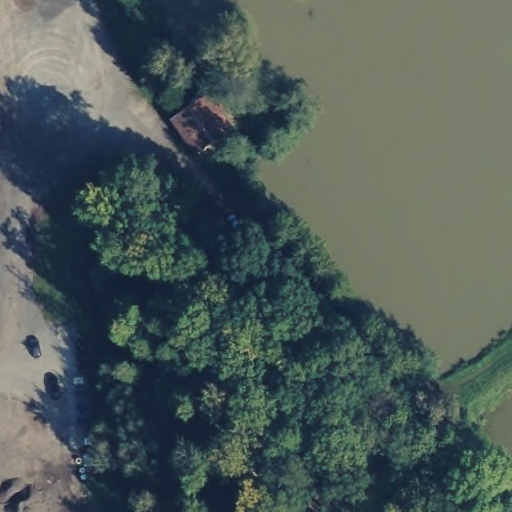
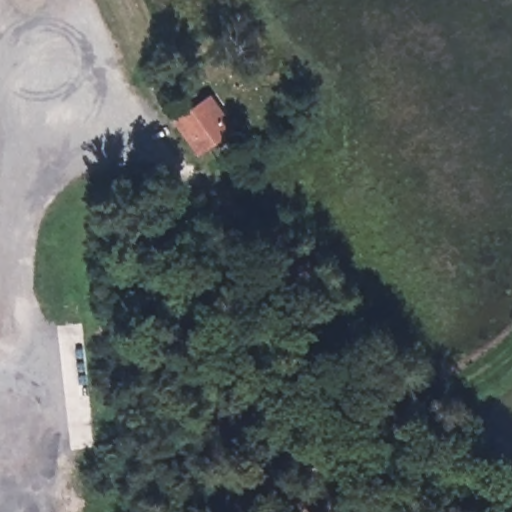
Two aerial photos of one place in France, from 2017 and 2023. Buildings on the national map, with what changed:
unchanged [(198,151),(173,119),(205,95),(229,128),(198,151)]

